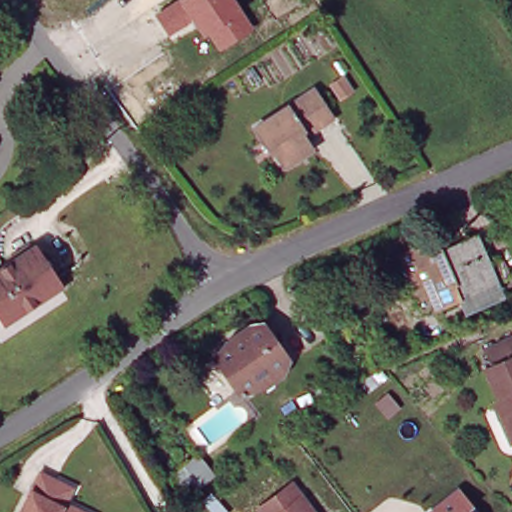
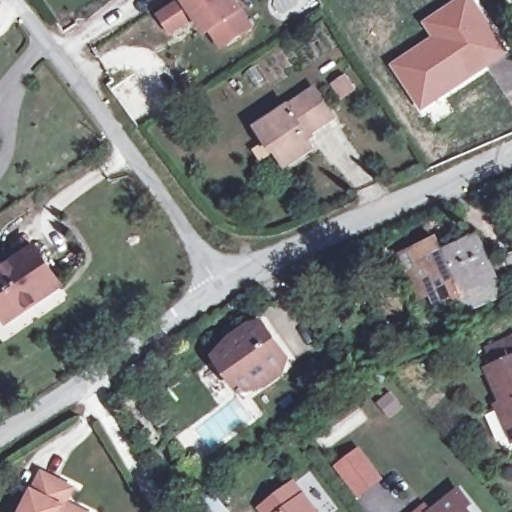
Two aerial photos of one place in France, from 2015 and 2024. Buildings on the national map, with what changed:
unchanged [(253,28),(218,51),(208,34),(202,37),(192,21),(170,35),(156,15),(180,0),(234,0),(253,28)]
new [(430,37),(421,22),(453,0),(476,0),(510,53),(420,112),(388,64),(430,37)]
unchanged [(343,98),(335,85),(347,77),(355,90),(343,98)]
unchanged [(313,149),(287,166),(262,126),(308,96),(319,90),(335,118),(326,124),(306,136),(313,149)]
unchanged [(405,257),(440,243),(445,255),(482,241),(493,266),(507,261),(512,272),(512,290),(505,293),(507,300),(470,316),(458,287),(422,302),(412,276),(405,257)]
unchanged [(6,322),(0,313),(0,272),(37,249),(60,287),(6,322)]
unchanged [(262,387),(255,376),(237,389),(212,355),(262,322),(285,356),(272,364),(280,375),(262,387)]
unchanged [(504,405),(490,372),(494,369),(487,351),(512,339),(512,437),(498,409),(504,405)]
new [(335,468),(360,449),(384,480),(359,498),(335,468)]
unchanged [(202,457),(218,477),(191,500),(174,479),(202,457)]
unchanged [(67,491),(59,506),(67,509),(73,512),(18,512),(37,475),(67,491)]
unchanged [(262,512),(261,511),(295,486),(314,512),(262,512)]
unchanged [(471,507),(467,511),(468,512),(437,512),(460,494),(471,507)]

